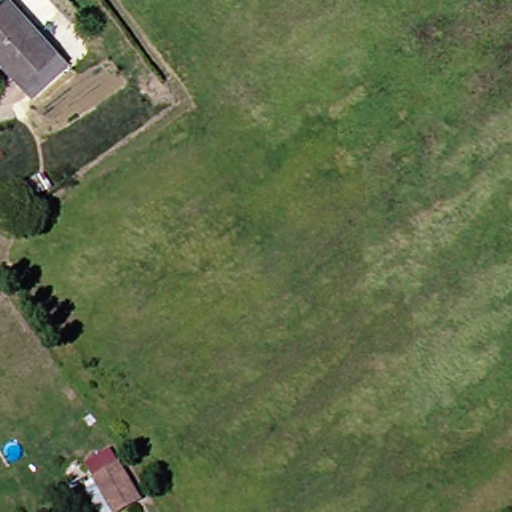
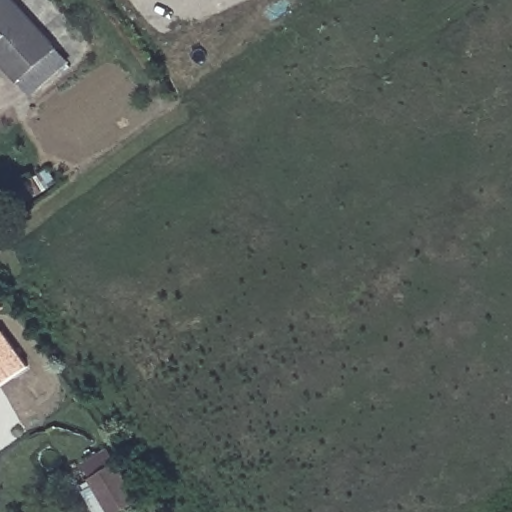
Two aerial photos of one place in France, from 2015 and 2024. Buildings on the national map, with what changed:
unchanged [(9,0),(51,45),(65,60),(31,93),(18,79),(0,60),(0,0),(9,0)]
new [(2,329),(29,366),(0,388),(0,331),(2,329)]
unchanged [(134,497),(114,512),(104,512),(79,479),(92,469),(81,455),(93,447),(134,497)]

